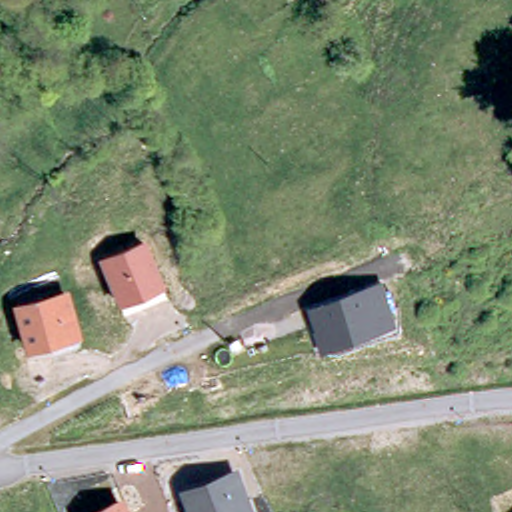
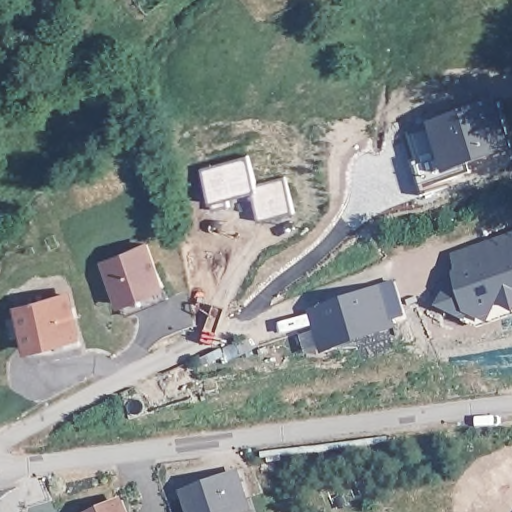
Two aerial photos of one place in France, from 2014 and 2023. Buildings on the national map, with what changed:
new [(500,101),(504,111),(498,113),(509,145),(466,161),(470,172),(421,190),(410,161),(415,160),(406,135),(500,101)]
new [(247,157),(256,188),(284,180),(293,212),(257,222),(250,194),(225,200),(228,207),(212,212),(210,204),(201,170),(247,157)]
new [(512,232),(512,311),(500,305),(490,325),(470,315),(467,321),(437,306),(454,271),(450,255),(512,232)]
unchanged [(145,240),(163,289),(117,306),(98,260),(145,240)]
unchanged [(381,280),(399,327),(325,356),(307,307),(381,280)]
unchanged [(73,294),(81,338),(27,350),(15,305),(73,294)]
unchanged [(254,511),(253,512),(191,512),(185,489),(241,471),(254,511)]
unchanged [(129,512),(83,512),(121,495),(129,512)]

